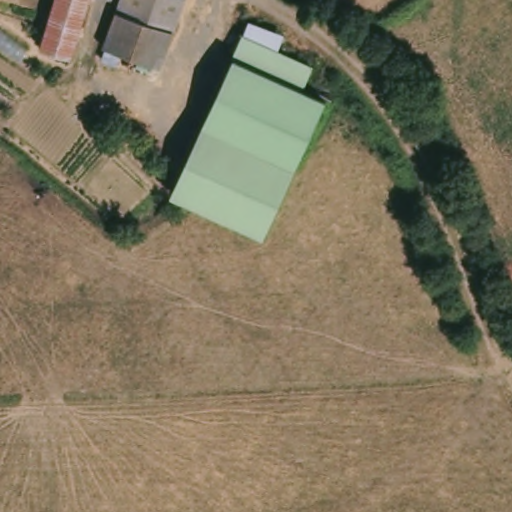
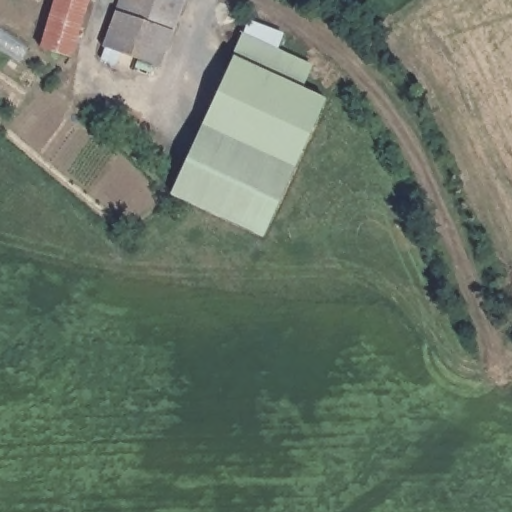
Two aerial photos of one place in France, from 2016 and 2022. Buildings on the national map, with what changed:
unchanged [(75,56),(45,46),(61,0),(93,0),(75,56)]
unchanged [(165,64),(163,68),(104,49),(121,0),(185,0),(165,64)]
unchanged [(263,236),(169,195),(233,54),(244,59),(248,45),(238,40),(245,18),(282,31),(267,71),(326,96),(263,236)]

